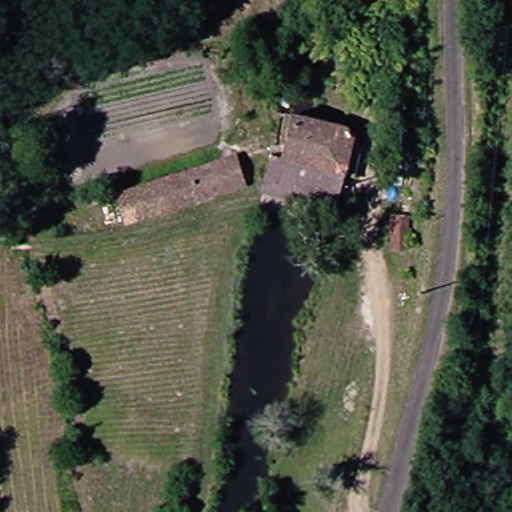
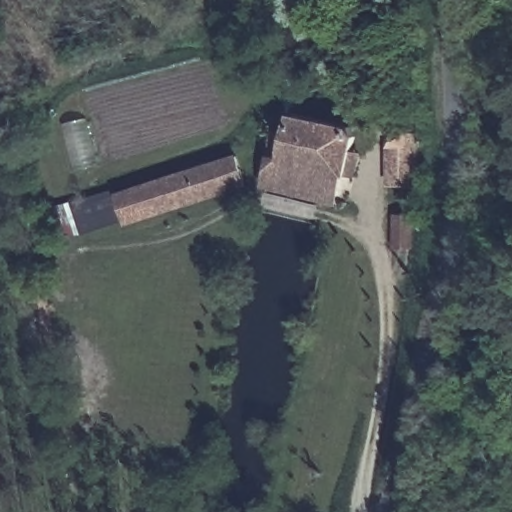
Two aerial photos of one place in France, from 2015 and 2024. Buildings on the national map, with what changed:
unchanged [(292,100),(348,116),(334,166),(278,151),(292,100)]
unchanged [(271,185),(253,179),(263,146),(278,151),(334,166),(324,199),(271,185)]
unchanged [(113,221),(104,194),(222,153),(231,181),(113,221)]

